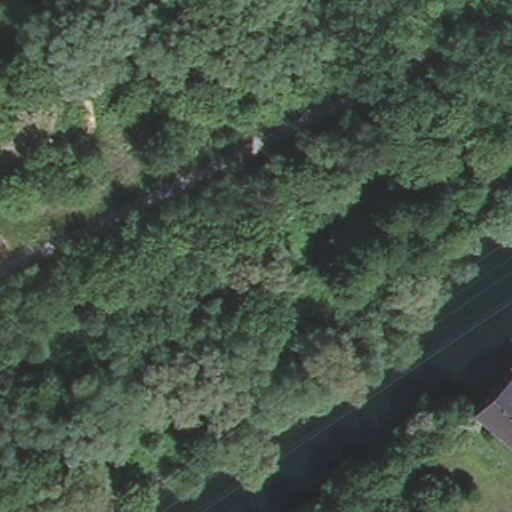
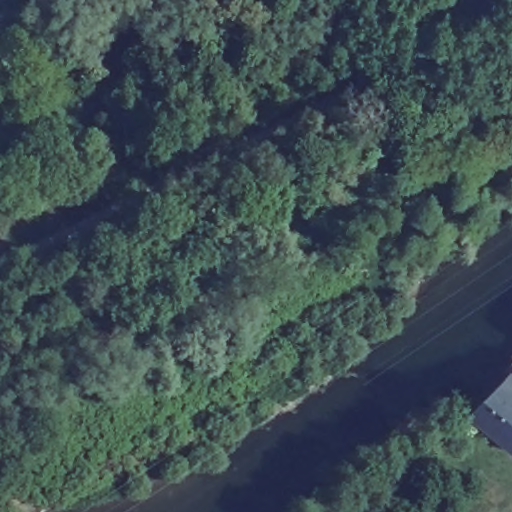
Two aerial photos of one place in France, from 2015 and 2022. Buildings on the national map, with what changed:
unchanged [(499,370),(512,356),(512,414),(484,390),(499,370)]
unchanged [(466,411),(484,390),(512,414),(512,448),(466,411)]

